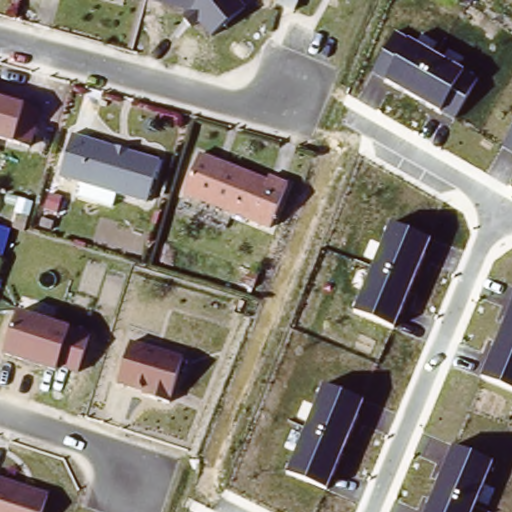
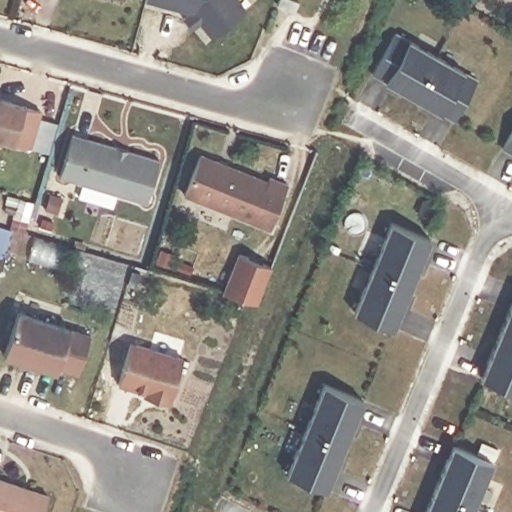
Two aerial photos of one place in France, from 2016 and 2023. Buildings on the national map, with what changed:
unchanged [(115,0),(120,0),(119,1),(115,0)]
unchanged [(212,34),(189,10),(153,0),(238,0),(244,8),(212,34)]
unchanged [(371,72),(394,31),(478,80),(454,120),(371,72)]
unchanged [(0,100),(40,111),(28,149),(0,141),(0,100)]
unchanged [(501,147),(512,128),(512,154),(501,147)]
unchanged [(155,160),(142,201),(55,174),(68,132),(155,160)]
unchanged [(266,183),(268,178),(286,185),(269,230),(182,196),(198,156),(266,183)]
unchanged [(355,310),(390,222),(432,239),(395,328),(355,310)]
new [(237,252),(269,265),(254,302),(221,292),(237,252)]
unchanged [(482,376),(512,303),(512,390),(482,376)]
unchanged [(15,312),(68,327),(89,336),(77,375),(55,372),(3,355),(15,312)]
unchanged [(169,399),(116,384),(127,346),(178,361),(169,399)]
unchanged [(286,471),(322,385),(364,402),(326,489),(286,471)]
unchanged [(452,445),(493,462),(472,512),(424,512),(452,445)]
unchanged [(42,512),(0,512),(0,480),(48,495),(42,512)]

